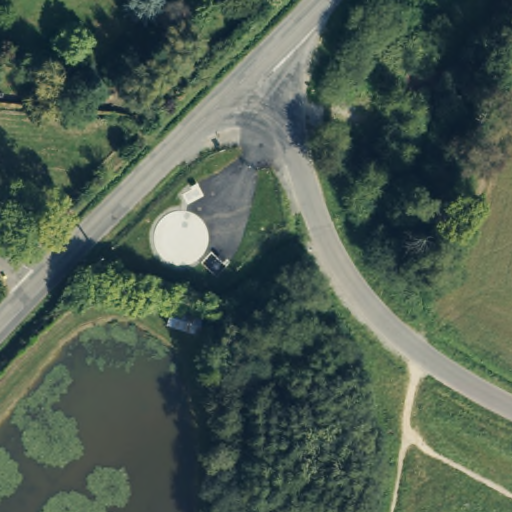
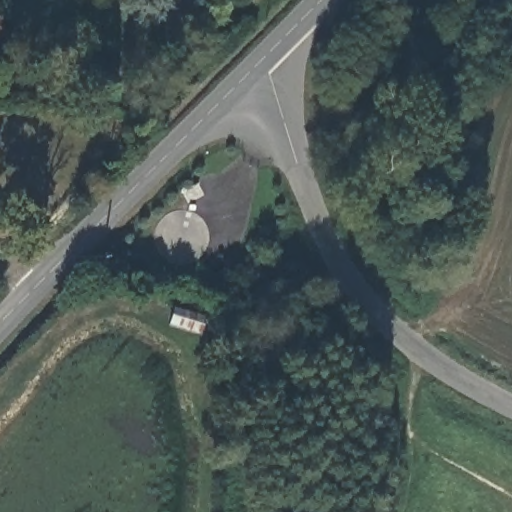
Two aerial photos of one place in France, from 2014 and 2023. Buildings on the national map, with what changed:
[]

